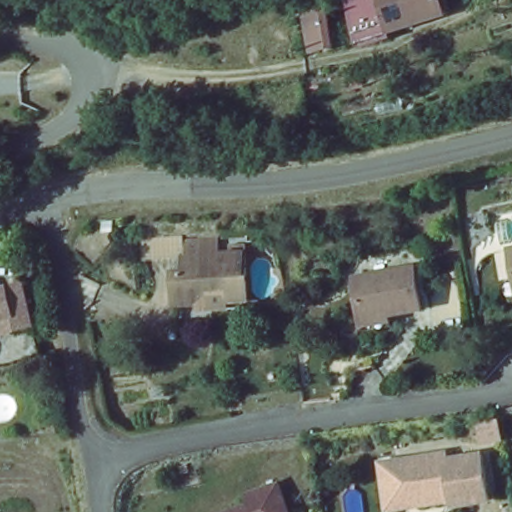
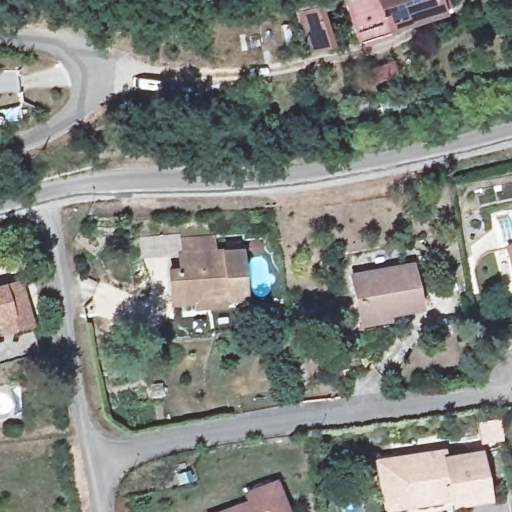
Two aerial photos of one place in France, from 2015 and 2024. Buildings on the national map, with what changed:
unchanged [(337,40),(316,46),(306,14),(352,0),(434,0),(394,11),(398,30),(340,46),(337,40)]
unchanged [(398,30),(394,11),(434,0),(452,0),(456,14),(398,30)]
unchanged [(184,235),(184,241),(220,239),(221,253),(233,253),(233,246),(244,246),(246,301),(228,301),(227,293),(201,294),(192,303),(173,304),(171,274),(181,274),(181,255),(144,257),(143,237),(184,235)]
unchanged [(413,265),(420,309),(357,319),(349,276),(413,265)]
unchanged [(29,331),(11,334),(0,336),(0,291),(21,287),(29,331)]
unchanged [(442,450),(442,457),(478,452),(484,497),(447,503),(447,497),(410,503),(408,483),(393,485),(389,458),(442,450)]
unchanged [(380,507),(374,461),(389,458),(393,485),(408,483),(410,503),(380,507)]
unchanged [(242,501),(239,492),(270,482),(280,512),(211,512),(242,501)]

